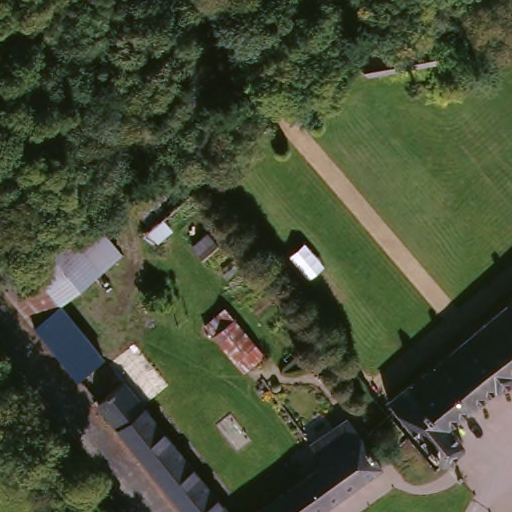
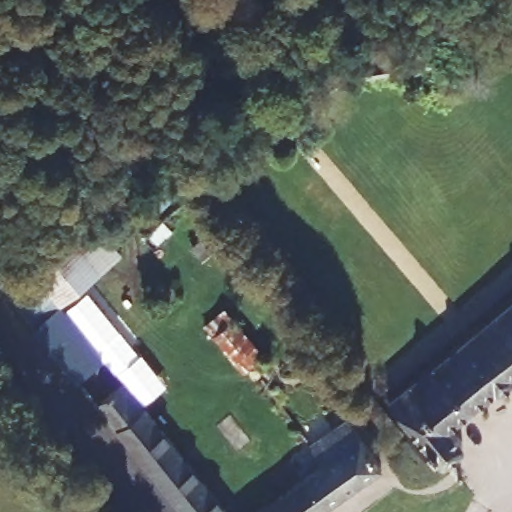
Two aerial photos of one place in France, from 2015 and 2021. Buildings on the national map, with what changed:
unchanged [(370,43),(433,33),(436,53),(370,65),(369,44),(370,43)]
unchanged [(10,290),(92,222),(120,258),(63,304),(37,325),(10,290)]
unchanged [(63,304),(104,358),(80,379),(37,325),(63,304)]
unchanged [(247,371),(209,325),(229,305),(269,351),(247,371)]
unchanged [(500,387),(455,422),(469,448),(445,469),(393,400),(394,399),(421,377),(442,361),(455,351),(512,306),(512,388),(506,393),(500,387)]
unchanged [(98,406),(126,383),(233,512),(184,512),(129,445),(98,406)]
unchanged [(313,449),(334,430),(351,418),(387,465),(327,512),(269,512),(324,467),(313,449)]

